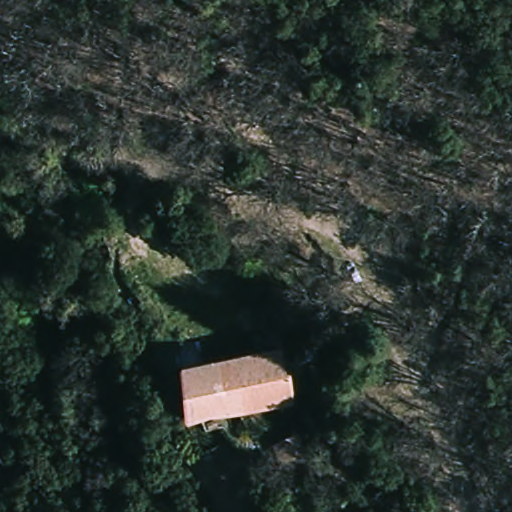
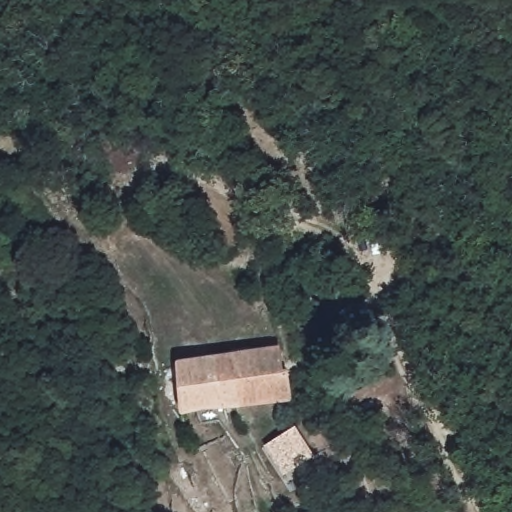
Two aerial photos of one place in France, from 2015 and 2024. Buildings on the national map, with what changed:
unchanged [(280,349),(288,405),(180,417),(176,363),(280,349)]
new [(284,477),(264,447),(295,426),(315,457),(284,477)]

